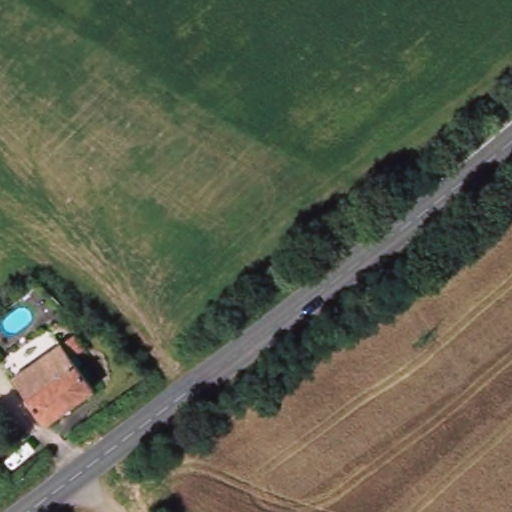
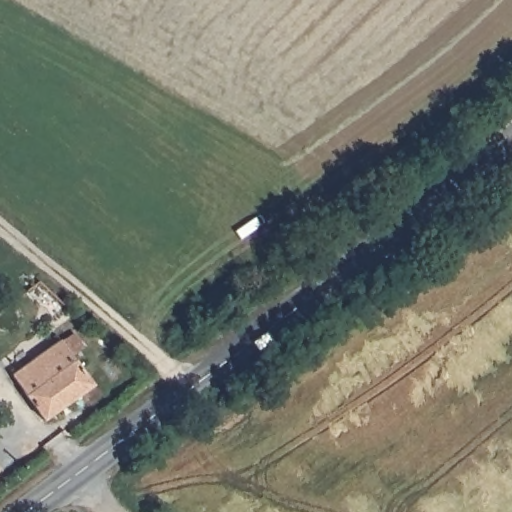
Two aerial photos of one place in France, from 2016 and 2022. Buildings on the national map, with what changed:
unchanged [(57,341),(91,383),(45,420),(10,376),(57,341)]

